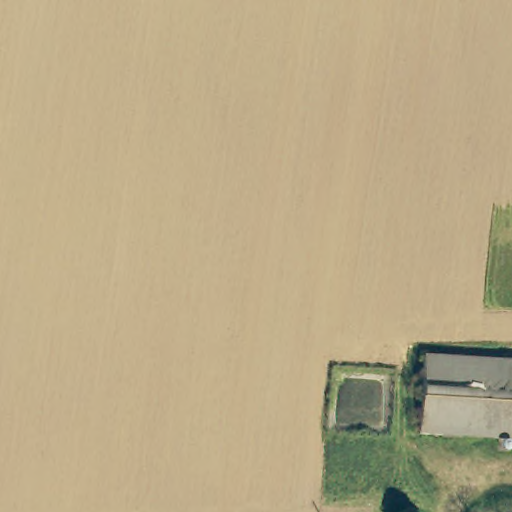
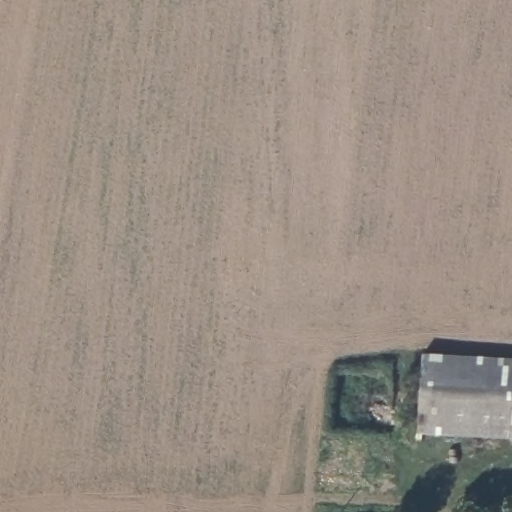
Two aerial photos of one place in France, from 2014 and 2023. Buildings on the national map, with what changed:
unchanged [(420,371),(420,357),(512,360),(512,430),(418,427),(420,371)]

